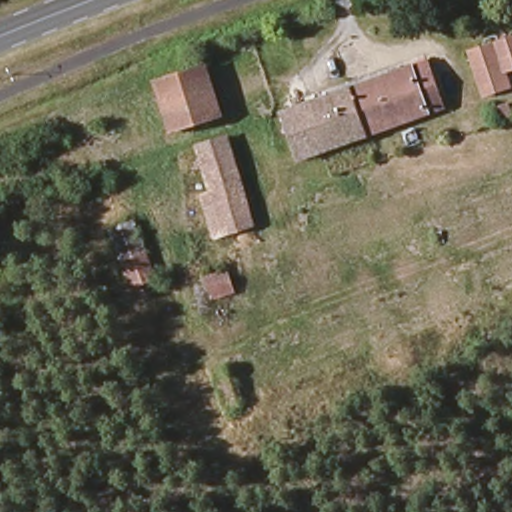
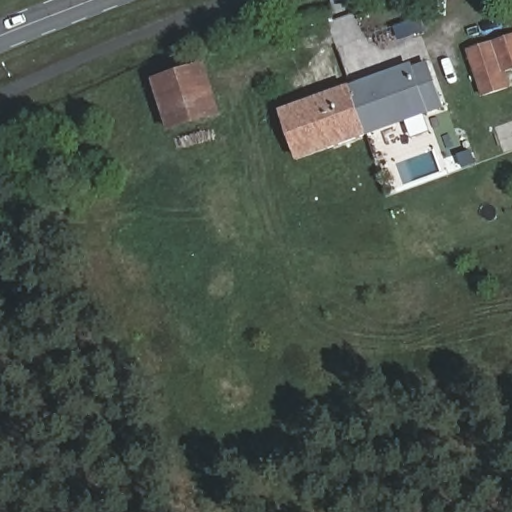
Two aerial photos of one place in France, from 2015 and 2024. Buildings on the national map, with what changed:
unchanged [(508,73),(512,84),(480,97),(467,55),(512,37),(512,71),(508,73)]
unchanged [(160,106),(151,80),(200,63),(208,86),(160,106)]
unchanged [(427,90),(441,85),(449,106),(302,158),(285,111),(419,65),(427,90)]
unchanged [(208,86),(217,113),(169,131),(160,106),(208,86)]
demolished [(224,140),(249,229),(210,240),(198,198),(208,195),(195,148),(224,140)]
unchanged [(159,277),(131,287),(109,229),(136,219),(159,277)]
unchanged [(227,266),(235,293),(208,301),(200,273),(227,266)]
unchanged [(220,371),(232,369),(241,399),(231,402),(220,371)]

